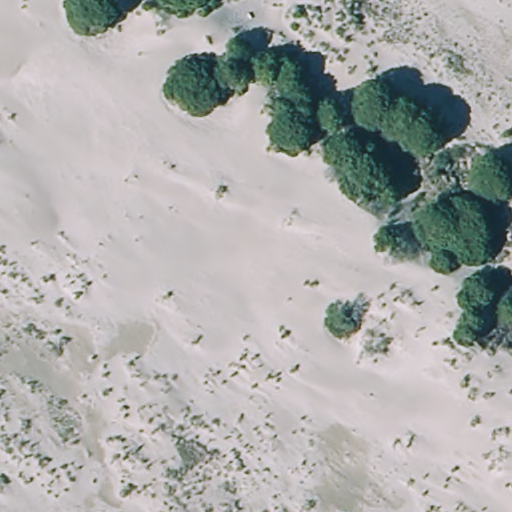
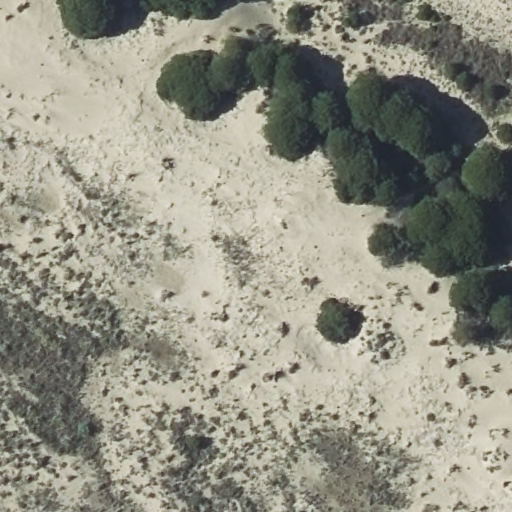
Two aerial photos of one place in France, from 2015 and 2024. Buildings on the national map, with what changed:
[]

